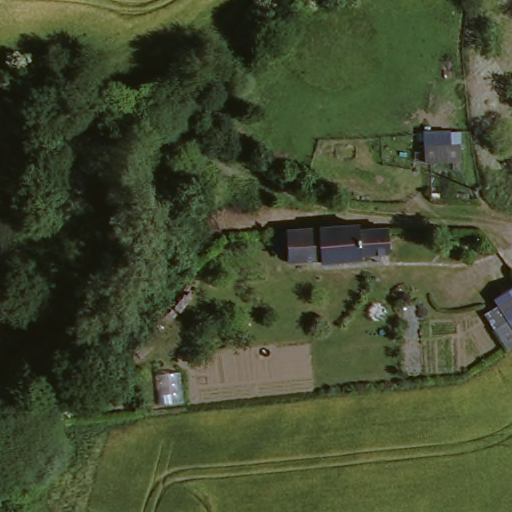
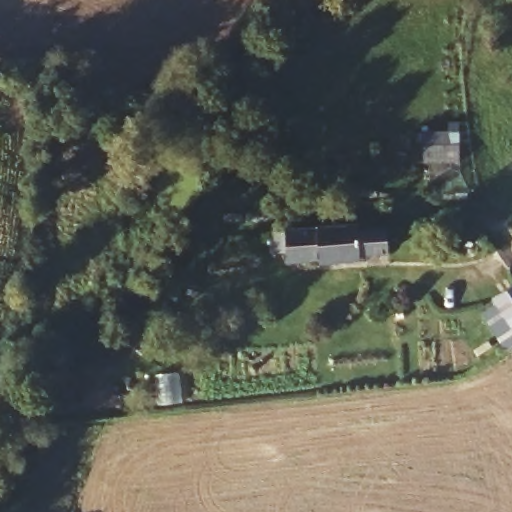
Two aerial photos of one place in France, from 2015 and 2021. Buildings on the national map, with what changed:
unchanged [(459,172),(426,175),(425,158),(458,156),(459,172)]
unchanged [(356,234),(384,232),(386,256),(357,259),(358,266),(319,270),(317,264),(287,267),(287,265),(283,235),(354,228),(356,234)]
unchanged [(512,289),(512,344),(486,306),(512,289)]

